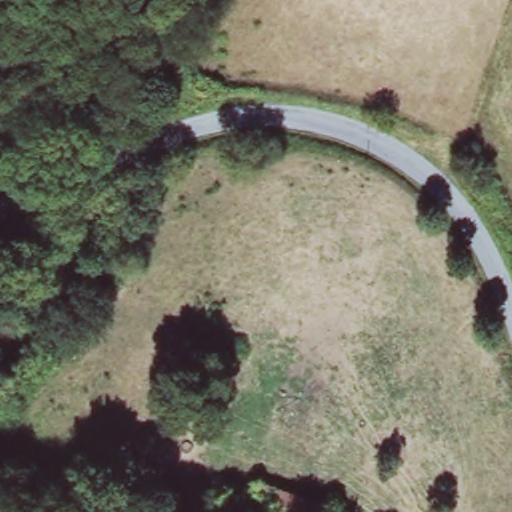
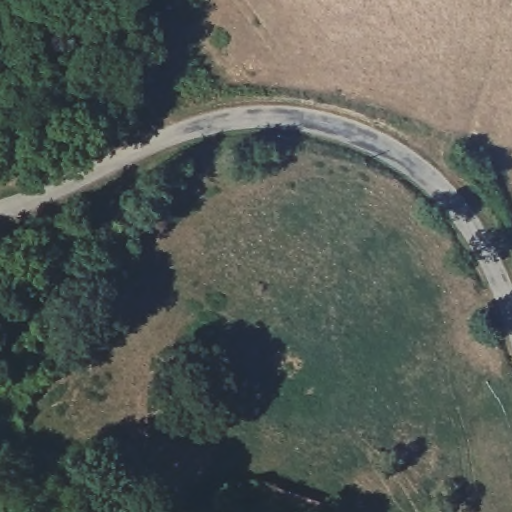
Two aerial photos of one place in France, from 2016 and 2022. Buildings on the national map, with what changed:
unchanged [(335,500),(331,512),(270,512),(260,509),(270,484),(335,500)]

